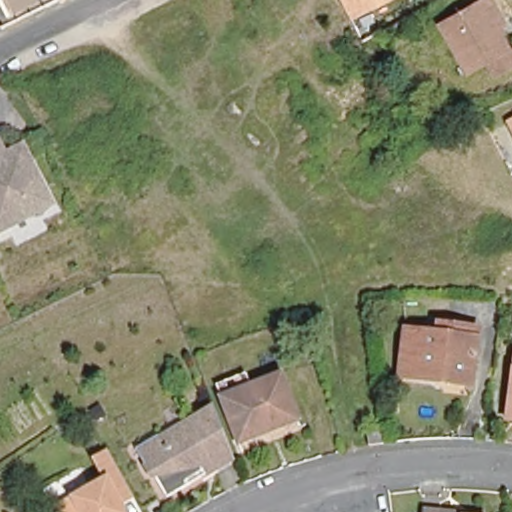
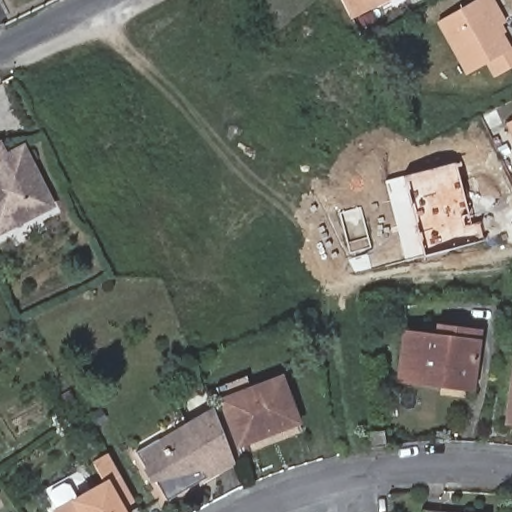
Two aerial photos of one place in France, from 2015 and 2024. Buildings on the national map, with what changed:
unchanged [(339,0),(386,0),(348,19),(339,0)]
unchanged [(512,68),(495,77),(487,63),(465,75),(435,23),(478,0),(489,0),(502,25),(495,29),(507,52),(512,49),(512,68)]
unchanged [(512,126),(512,136),(508,128),(512,126)]
unchanged [(0,233),(0,148),(5,158),(23,149),(51,207),(0,233)]
new [(485,239),(425,256),(403,175),(455,162),(471,225),(480,222),(485,239)]
unchanged [(402,366),(406,328),(437,332),(438,324),(479,329),(470,389),(442,386),(401,381),(402,366)]
unchanged [(268,433),(241,443),(222,399),(216,387),(244,375),(249,387),(279,375),(295,412),(298,421),(268,433)]
unchanged [(512,407),(512,422),(510,422),(512,407)]
unchanged [(206,463),(195,470),(199,477),(159,498),(140,464),(135,467),(126,451),(149,438),(156,451),(185,436),(180,423),(204,409),(227,461),(209,470),(206,463)]
unchanged [(393,437),(396,453),(380,456),(377,442),(377,440),(393,437)]
unchanged [(129,492),(115,501),(123,512),(52,512),(50,510),(100,477),(90,462),(105,452),(129,492)]

